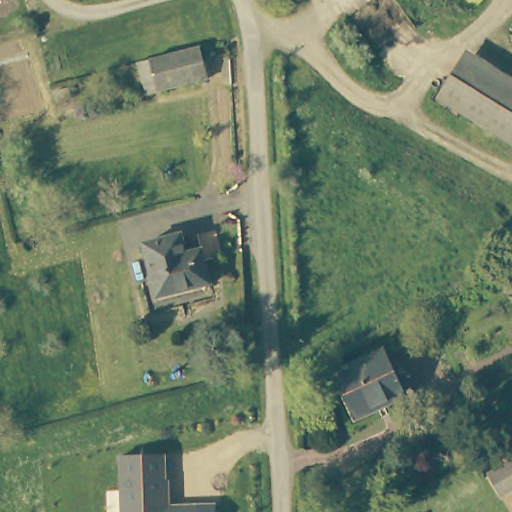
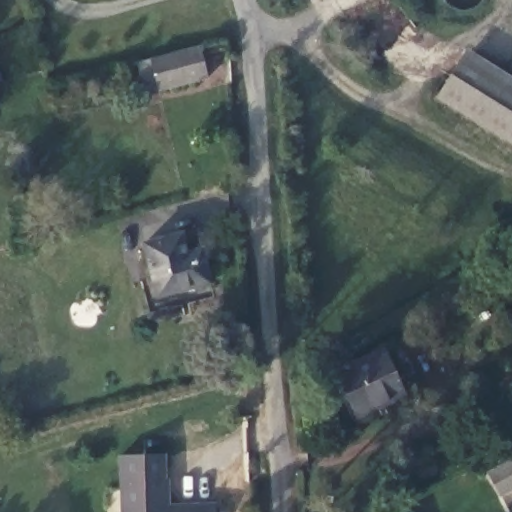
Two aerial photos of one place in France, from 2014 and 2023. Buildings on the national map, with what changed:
unchanged [(208,79),(159,91),(147,95),(138,62),(200,47),(208,79)]
unchanged [(512,88),(512,132),(443,91),(463,60),(512,88)]
unchanged [(178,236),(182,255),(203,249),(207,262),(202,264),(207,287),(153,300),(139,246),(178,236)]
unchanged [(387,404),(385,401),(352,416),(331,373),(380,349),(402,397),(387,404)]
unchanged [(197,512),(123,512),(121,454),(165,453),(166,492),(169,492),(169,507),(180,507),(196,507),(197,512)]
unchanged [(512,458),(512,484),(498,492),(486,472),(512,458)]

